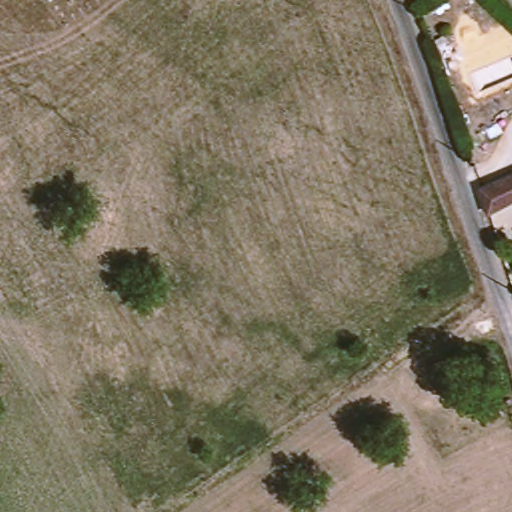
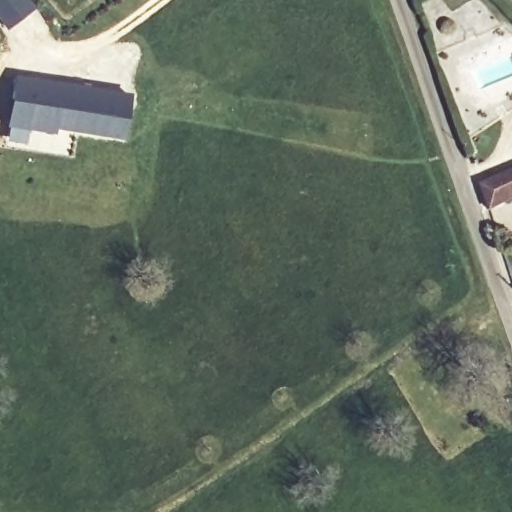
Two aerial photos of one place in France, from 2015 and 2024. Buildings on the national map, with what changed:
new [(0,22),(0,0),(27,0),(33,9),(7,30),(0,22)]
new [(122,140),(55,129),(55,136),(8,128),(16,74),(130,92),(122,140)]
unchanged [(512,167),(512,196),(485,207),(475,182),(512,167)]

